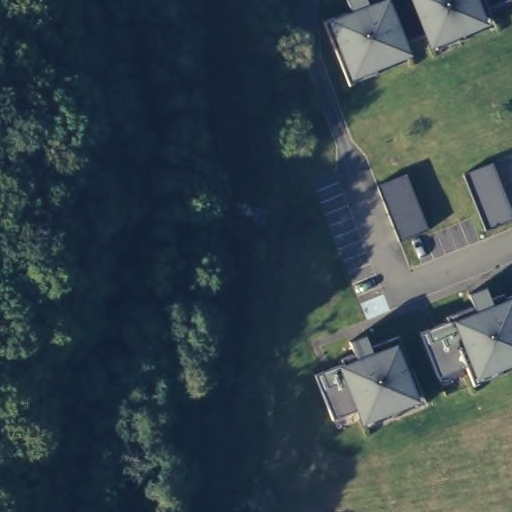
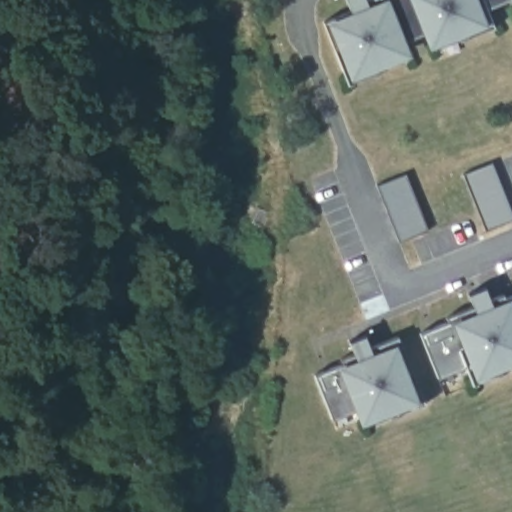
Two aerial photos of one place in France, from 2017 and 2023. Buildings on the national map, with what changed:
unchanged [(491,27),(430,49),(423,34),(403,42),(409,57),(347,81),(323,22),(350,11),(346,0),(365,0),(366,4),(376,0),(506,0),(485,10),(491,27)]
unchanged [(510,0),(512,0),(512,4),(510,0)]
unchanged [(484,231),(462,174),(492,162),(512,213),(512,219),(484,231)]
unchanged [(399,242),(378,186),(406,175),(426,229),(399,242)]
unchanged [(473,383),(465,367),(438,378),(420,332),(472,311),(466,293),(485,287),(491,302),(512,294),(512,366),(473,383)]
unchanged [(360,427),(353,411),(334,420),(315,375),(355,359),(348,341),(364,333),(370,347),(397,336),(423,402),(360,427)]

